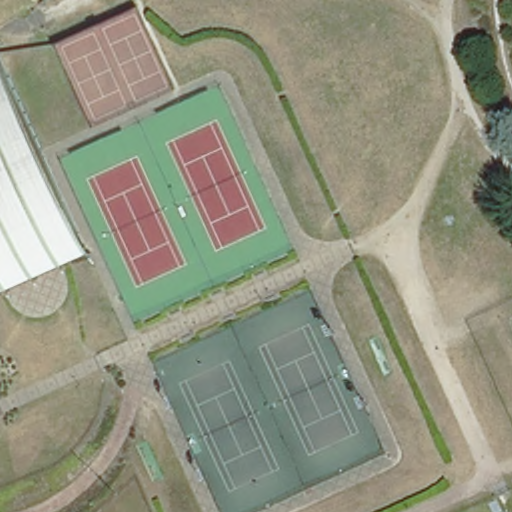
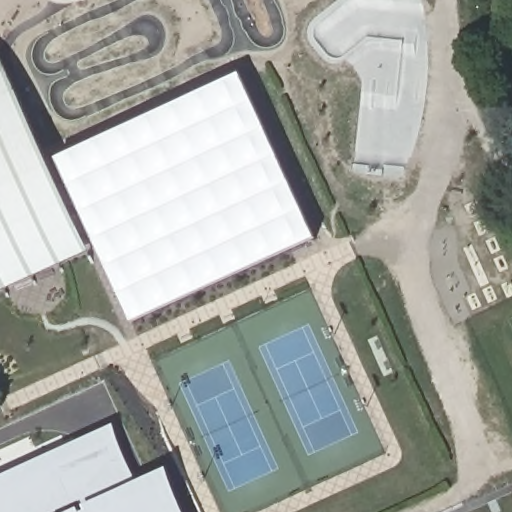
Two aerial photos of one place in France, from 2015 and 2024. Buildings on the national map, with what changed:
unchanged [(52,46),(49,42),(131,4),(133,9),(52,46)]
unchanged [(0,291),(0,65),(86,252),(0,291)]
new [(240,74),(317,239),(132,323),(56,160),(240,74)]
new [(139,481),(168,467),(188,512),(0,512),(0,478),(116,425),(139,481)]

